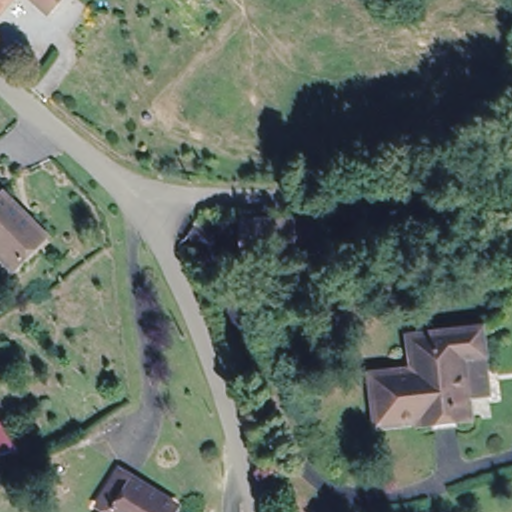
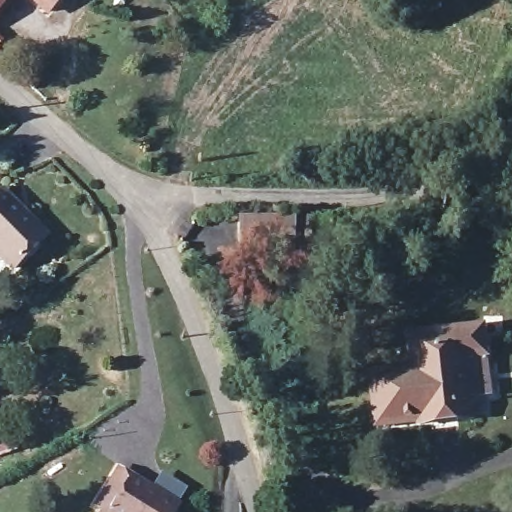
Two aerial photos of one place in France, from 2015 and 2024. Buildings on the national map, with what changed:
unchanged [(14,0),(0,15),(0,0),(14,0)]
unchanged [(54,11),(41,0),(64,0),(60,5),(54,11)]
unchanged [(5,46),(0,51),(0,42),(5,46)]
unchanged [(30,250),(7,271),(0,263),(0,199),(4,196),(21,217),(41,241),(30,250)]
unchanged [(249,221),(315,216),(316,239),(303,240),(250,242),(249,221)]
unchanged [(250,242),(303,240),(304,259),(250,261),(250,242)]
unchanged [(373,374),(415,369),(410,333),(481,323),(485,354),(465,355),(467,394),(455,395),(455,410),(420,414),(421,421),(382,425),(373,374)]
unchanged [(182,503),(177,512),(109,512),(110,510),(106,508),(127,472),(182,503)]

